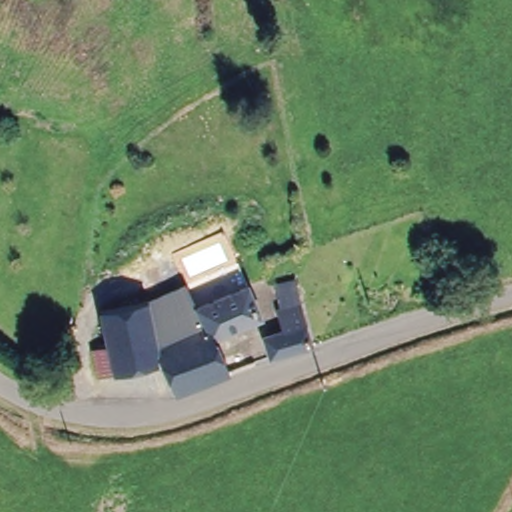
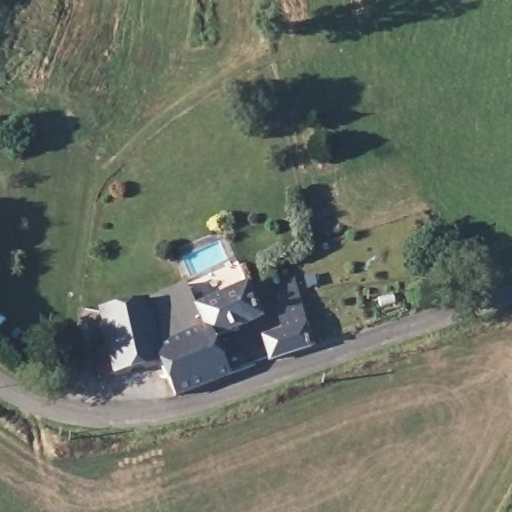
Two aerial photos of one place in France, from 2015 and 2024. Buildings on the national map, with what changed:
unchanged [(212,377),(171,394),(171,391),(159,363),(112,375),(96,312),(187,276),(194,298),(244,282),(255,316),(208,333),(223,373),(212,377)]
unchanged [(274,350),(268,332),(283,327),(272,287),(295,281),(298,302),(308,337),(274,350)]

